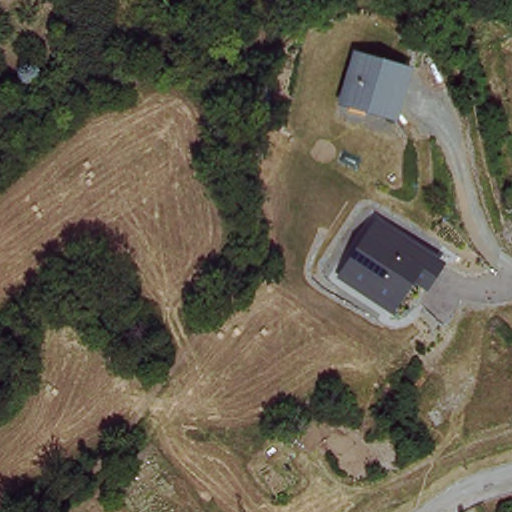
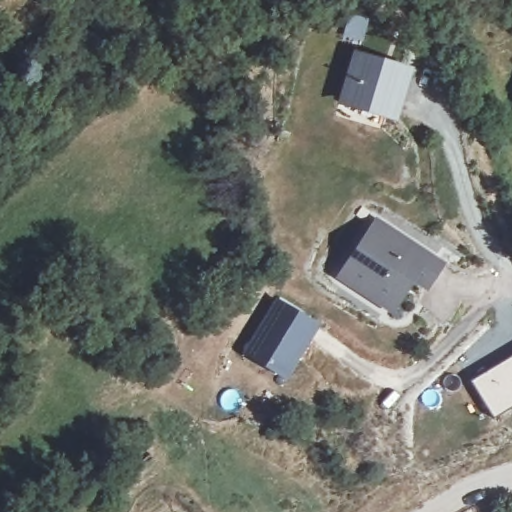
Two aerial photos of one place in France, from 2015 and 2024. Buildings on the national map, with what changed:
unchanged [(352,105),(364,61),(415,75),(402,119),(352,105)]
unchanged [(375,215),(444,265),(422,295),(412,287),(392,315),(335,277),(375,215)]
new [(288,381),(243,354),(277,297),(321,326),(288,381)]
new [(512,357),(512,405),(494,417),(472,381),(512,357)]

